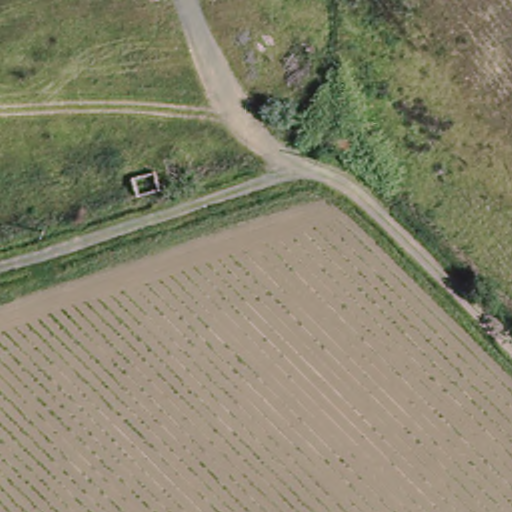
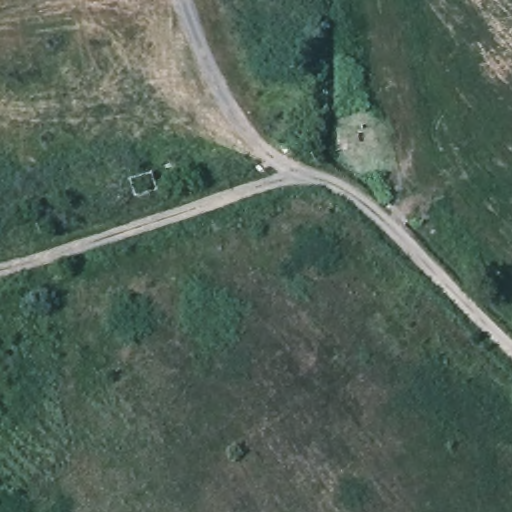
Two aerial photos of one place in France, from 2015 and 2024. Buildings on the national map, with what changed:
unchanged [(346,152),(334,152),(334,139),(345,138),(346,152)]
unchanged [(163,192),(139,199),(131,181),(157,172),(163,192)]

